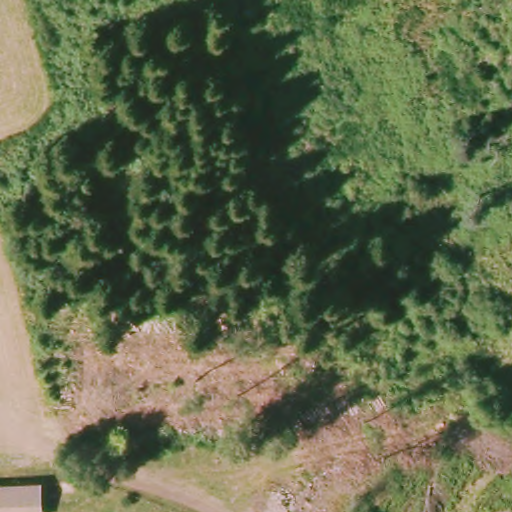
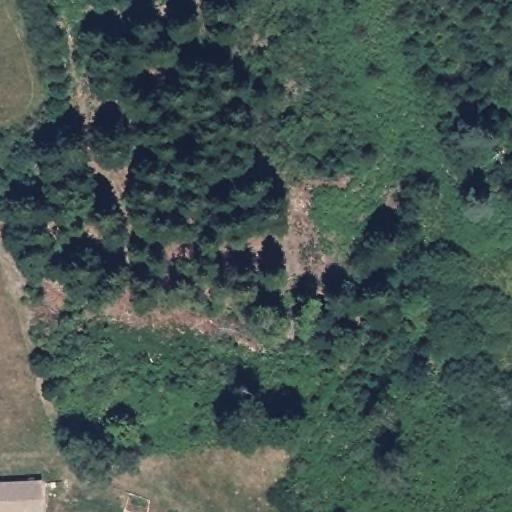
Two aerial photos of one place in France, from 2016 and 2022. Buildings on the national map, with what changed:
unchanged [(45,483),(44,512),(0,512),(0,486),(45,483)]

